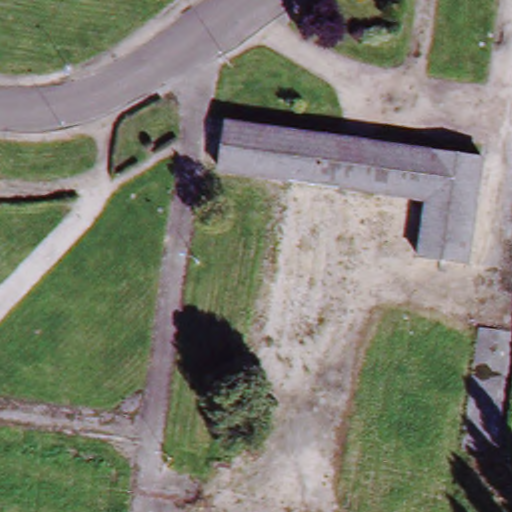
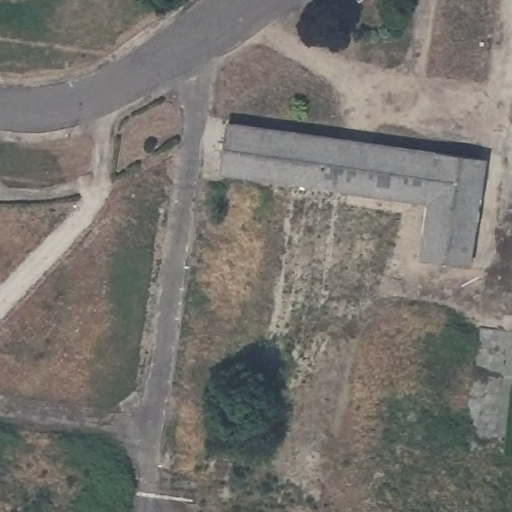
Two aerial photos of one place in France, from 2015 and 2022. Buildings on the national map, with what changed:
unchanged [(237,124),(492,161),(478,264),(429,258),(436,202),(361,191),(230,174),(237,124)]

